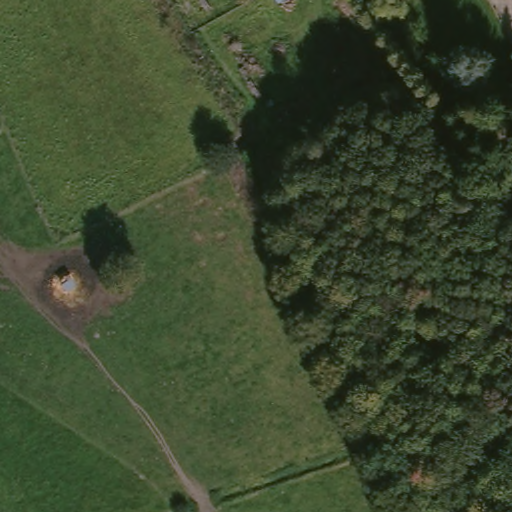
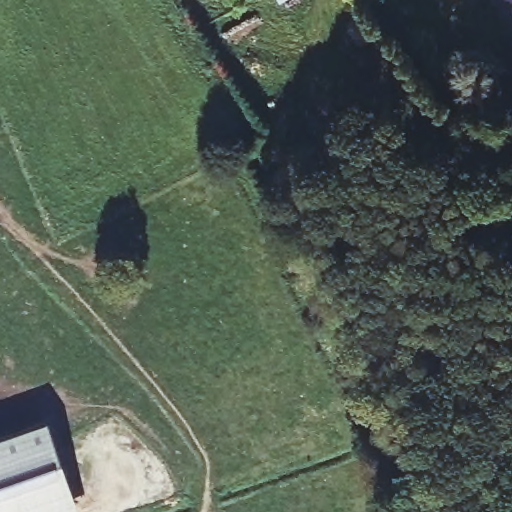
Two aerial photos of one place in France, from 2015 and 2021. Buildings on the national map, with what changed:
new [(77,512),(0,512),(0,439),(48,423),(77,512)]

